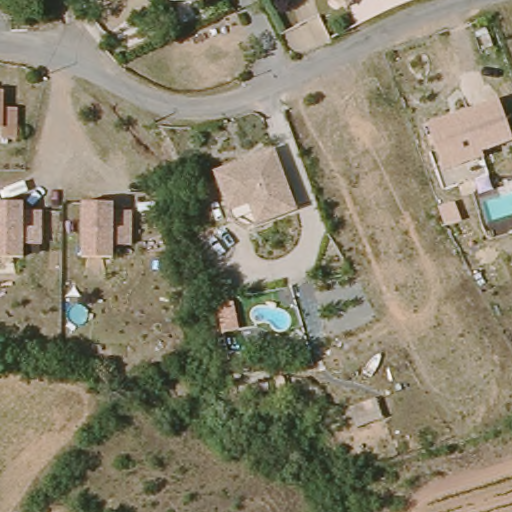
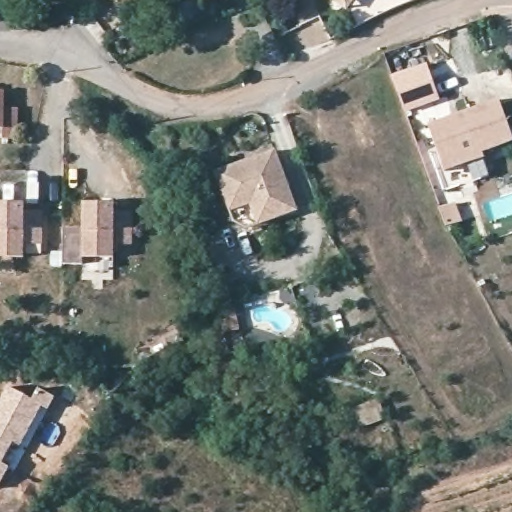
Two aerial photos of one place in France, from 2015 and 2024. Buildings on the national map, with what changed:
unchanged [(332,0),(351,0),(344,9),(332,0)]
new [(441,99),(405,111),(392,75),(427,63),(441,99)]
unchanged [(9,107),(22,107),(22,138),(5,138),(5,132),(0,132),(0,91),(9,90),(9,107)]
unchanged [(502,96),(512,122),(512,141),(450,166),(435,121),(502,96)]
unchanged [(292,213),(255,228),(254,229),(245,209),(227,216),(212,178),(269,155),(292,213)]
unchanged [(21,214),(41,215),(40,245),(20,244),(19,256),(0,256),(0,200),(22,201),(21,214)]
unchanged [(82,200),(112,202),(111,214),(130,215),(129,245),(109,244),(109,257),(79,255),(82,200)]
new [(237,304),(240,336),(225,338),(220,306),(237,304)]
new [(32,399),(37,388),(55,396),(49,408),(42,404),(0,484),(0,403),(10,387),(32,399)]

